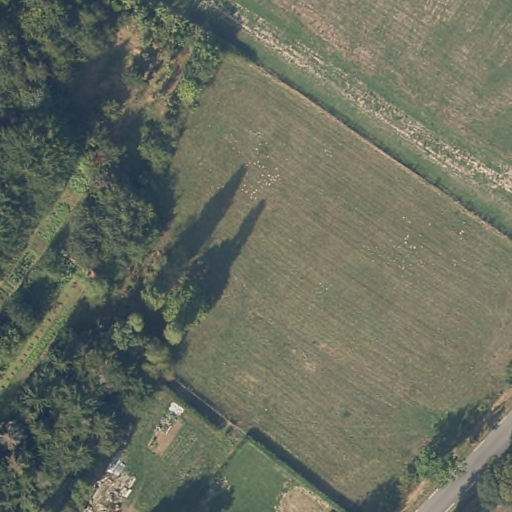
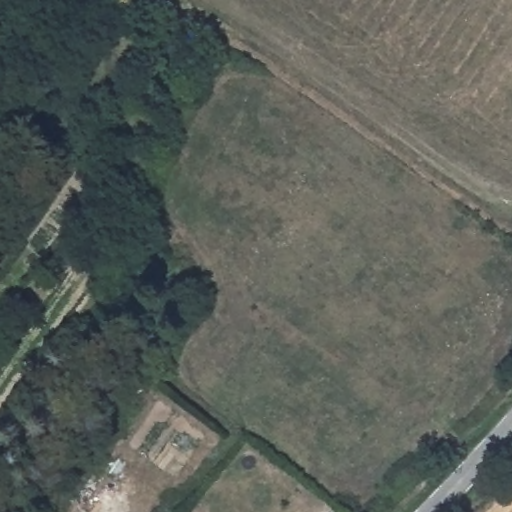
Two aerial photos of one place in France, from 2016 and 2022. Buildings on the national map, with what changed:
[]

